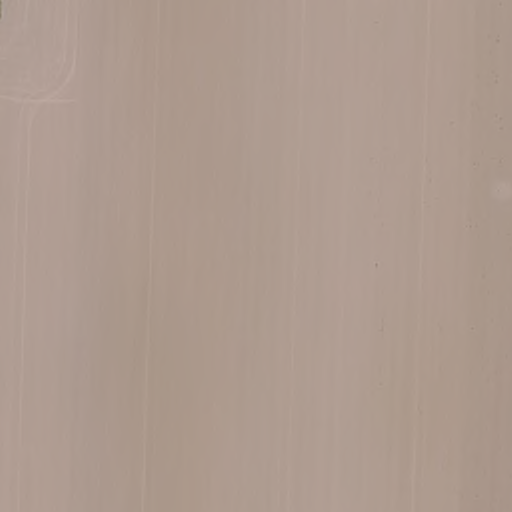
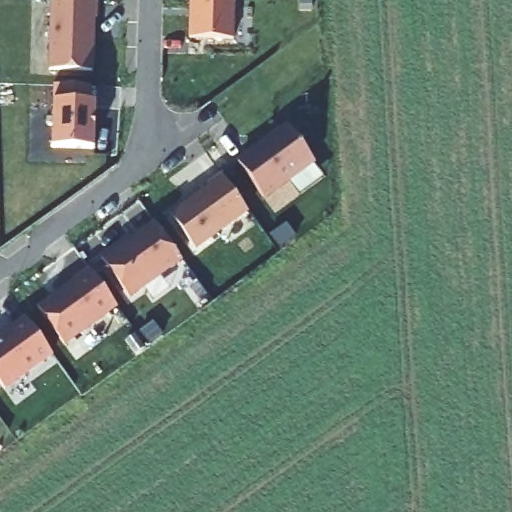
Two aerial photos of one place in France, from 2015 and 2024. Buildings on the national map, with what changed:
new [(97,18),(94,18),(92,72),(49,70),(51,0),(98,2),(97,18)]
new [(233,39),(189,38),(190,0),(234,0),(233,39)]
new [(90,103),(94,103),(94,118),(91,118),(91,127),(94,127),(93,149),(51,148),(53,86),(90,87),(90,103)]
new [(254,151),(254,150),(267,141),(268,142),(284,130),(309,164),(263,198),(238,163),(254,151)]
new [(248,212),(196,250),(169,215),(208,186),(207,184),(221,174),(248,212)]
new [(183,261),(129,299),(101,260),(130,239),(132,242),(140,236),(138,234),(154,222),(183,261)]
new [(117,307),(64,346),(38,309),(74,282),(73,280),(89,269),(117,307)]
new [(53,355),(5,390),(0,383),(0,338),(2,341),(10,334),(8,332),(26,319),(53,355)]

